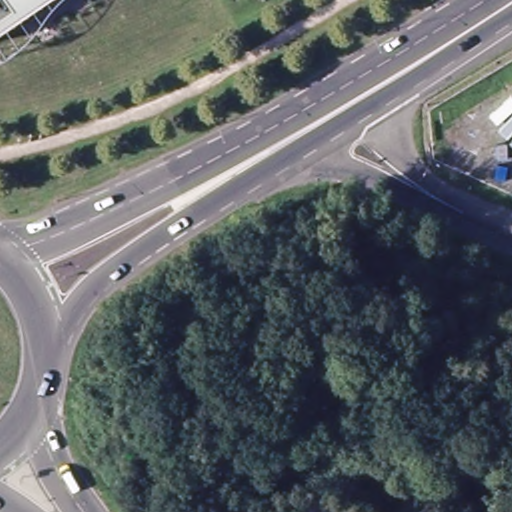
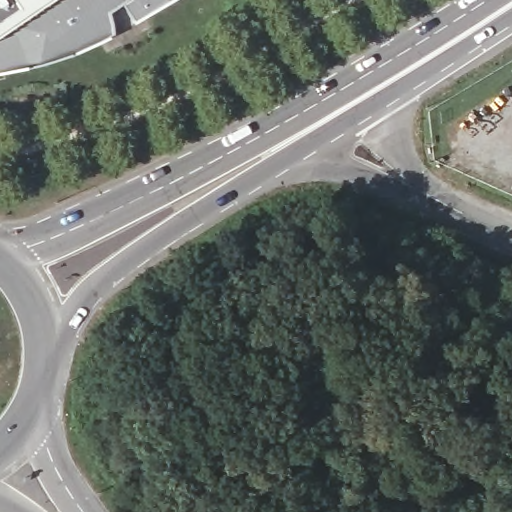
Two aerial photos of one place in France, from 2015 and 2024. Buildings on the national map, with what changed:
unchanged [(0,0),(44,0),(0,30),(0,0)]
new [(174,0),(135,24),(122,3),(107,12),(111,25),(111,37),(68,54),(0,74),(0,30),(44,0),(174,0)]

